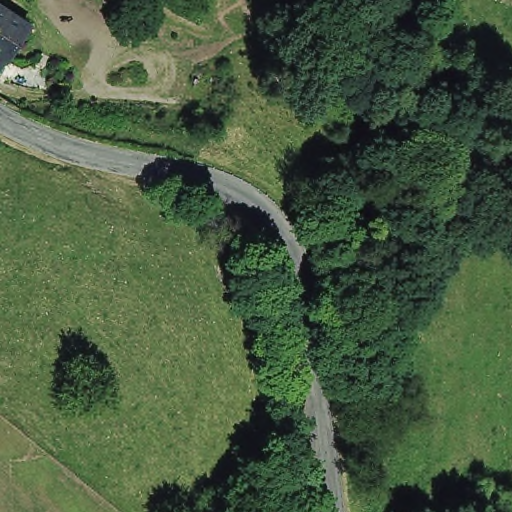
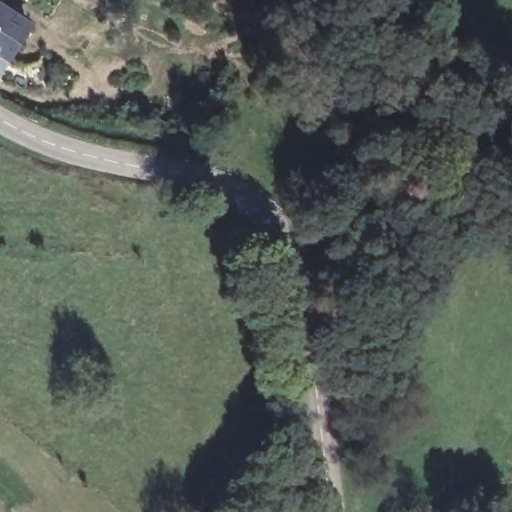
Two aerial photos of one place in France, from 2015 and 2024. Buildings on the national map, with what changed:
unchanged [(7,60),(0,70),(0,8),(29,27),(7,60)]

